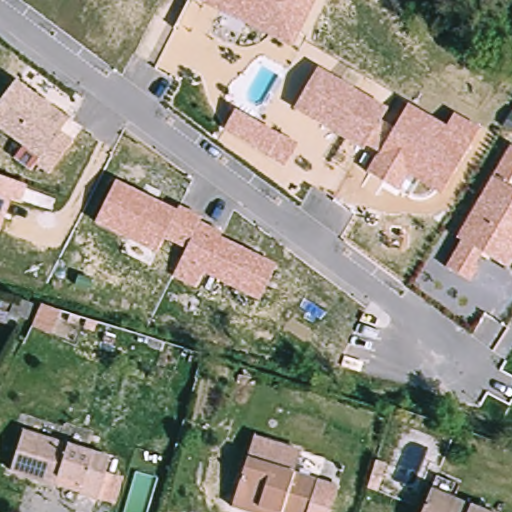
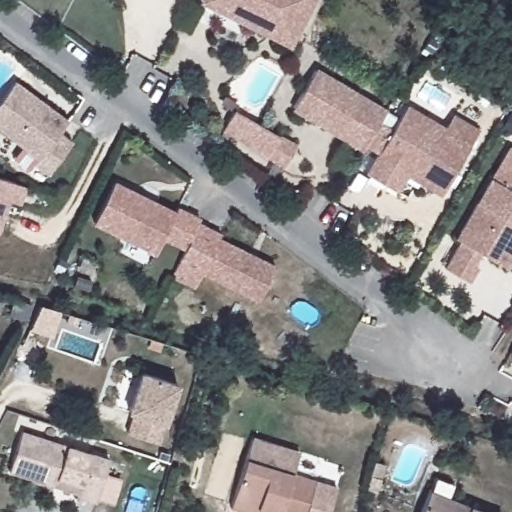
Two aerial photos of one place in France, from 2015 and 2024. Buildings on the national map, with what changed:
unchanged [(291,47),(200,4),(202,0),(313,0),(291,47)]
unchanged [(480,127),(442,194),(409,175),(399,192),(368,172),(378,153),(366,146),(363,151),(296,110),(318,69),(388,107),(382,119),(396,125),(408,104),(447,127),(454,114),(480,127)]
unchanged [(59,130),(71,141),(49,173),(35,164),(30,169),(16,157),(22,147),(0,130),(0,102),(16,80),(68,118),(59,130)]
unchanged [(278,138),(282,133),(297,141),(284,164),(267,154),(225,130),(234,110),(278,138)]
unchanged [(480,251),(473,266),(478,269),(471,283),(446,267),(461,240),(456,237),(490,179),(509,145),(512,146),(512,181),(508,188),(512,191),(512,265),(510,269),(480,251)]
unchanged [(9,200),(0,231),(0,176),(26,186),(22,203),(9,200)]
unchanged [(195,287),(174,277),(185,248),(164,236),(157,253),(95,224),(115,180),(176,211),(180,206),(203,216),(200,222),(223,231),(219,238),(274,263),(257,300),(203,273),(195,287)]
new [(140,370),(179,383),(165,424),(159,443),(126,433),(132,413),(127,412),(140,370)]
unchanged [(113,506),(95,501),(94,506),(77,500),(78,495),(9,472),(22,431),(109,458),(104,473),(122,479),(113,506)]
unchanged [(255,438),(301,454),(294,475),(338,490),(331,512),(245,512),(231,507),(255,438)]
unchanged [(481,512),(419,512),(428,490),(481,512)]

